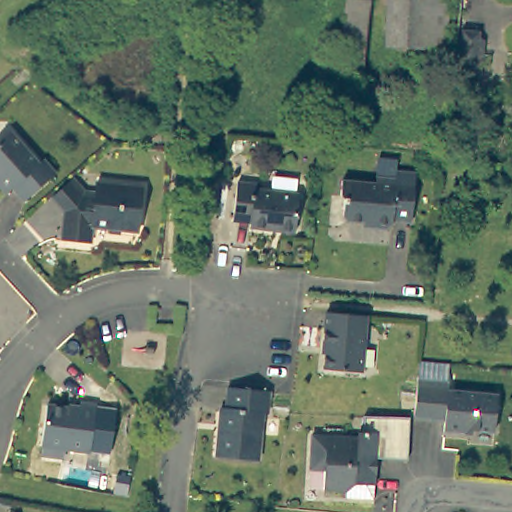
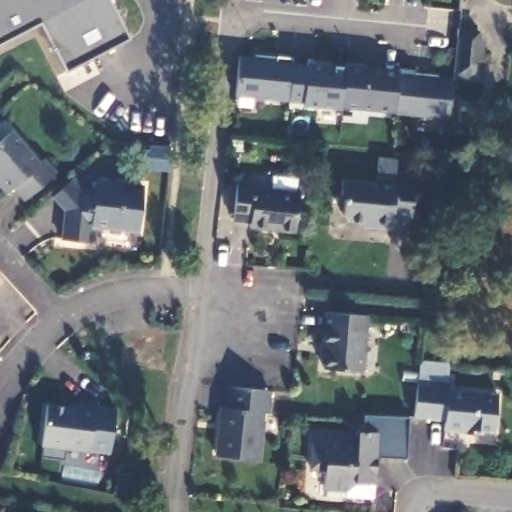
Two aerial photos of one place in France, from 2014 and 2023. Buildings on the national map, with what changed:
new [(128,37),(65,69),(39,20),(0,40),(0,0),(108,0),(128,37)]
demolished [(364,77),(342,75),(349,0),(370,0),(364,77)]
demolished [(444,47),(382,44),(385,0),(446,0),(444,47)]
unchanged [(484,50),(494,51),(492,64),(482,63),(481,76),(455,74),(459,33),(485,36),(484,50)]
new [(235,96),(239,56),(276,60),(276,56),(292,57),(288,101),(235,96)]
new [(341,108),(303,105),(303,102),(288,101),(292,64),(307,65),(307,62),(345,66),(341,108)]
new [(365,65),(365,67),(399,71),(394,110),(364,107),(364,110),(341,108),(346,62),(365,65)]
new [(438,74),(438,77),(453,79),(448,120),(394,114),(394,110),(399,71),(399,68),(438,74)]
unchanged [(55,174),(24,201),(11,188),(7,192),(0,185),(0,145),(10,135),(39,164),(42,160),(55,174)]
unchanged [(380,175),(399,177),(400,169),(419,171),(413,220),(395,217),(389,226),(374,225),(371,220),(349,217),(351,197),(346,191),(347,176),(379,181),(380,175)]
unchanged [(144,185),(140,227),(94,226),(94,239),(64,236),(66,209),(53,194),(75,174),(90,191),(98,191),(99,181),(144,185)]
unchanged [(259,190),(302,197),(297,235),(252,229),(253,223),(237,221),(242,184),(259,187),(259,190)]
unchanged [(362,371),(320,366),(323,343),(327,343),(330,311),(368,315),(362,371)]
unchanged [(466,430),(465,432),(444,430),(444,418),(427,418),(413,418),(420,361),(443,363),(449,364),(447,381),(446,392),(496,396),(494,419),(493,432),(466,430)]
unchanged [(270,413),(266,412),(259,458),(219,452),(226,407),(229,408),(233,385),(274,390),(270,413)]
unchanged [(93,410),(91,451),(42,446),(46,404),(93,410)]
unchanged [(376,455),(373,457),(371,460),(369,463),(369,466),(371,470),(372,472),(374,475),(373,500),(346,498),(347,491),(324,490),(324,470),(310,469),(310,437),(357,438),(362,431),(363,417),(402,417),(408,418),(406,457),(376,455)]

